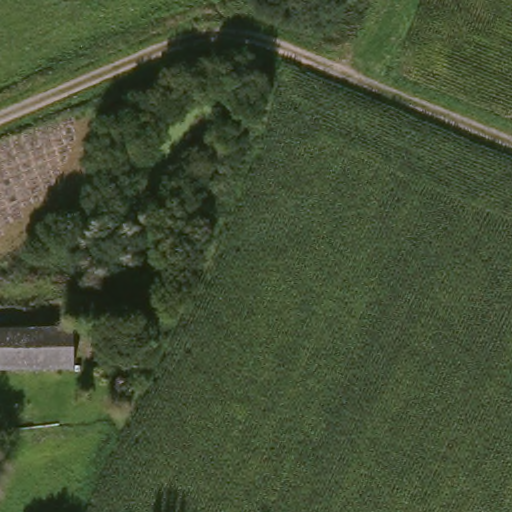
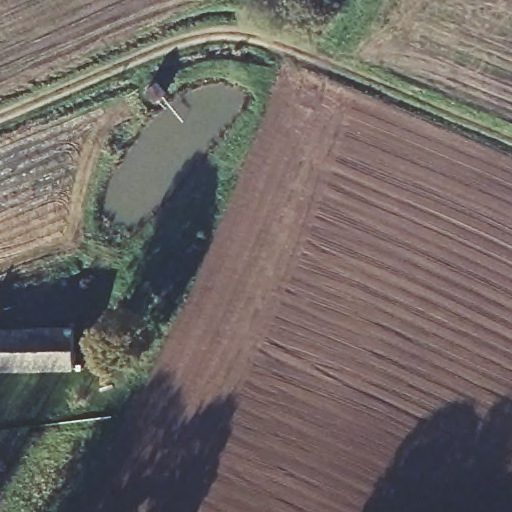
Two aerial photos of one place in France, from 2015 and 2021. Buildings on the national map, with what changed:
unchanged [(83,361),(0,367),(0,322),(5,322),(15,322),(81,319),(83,361)]

